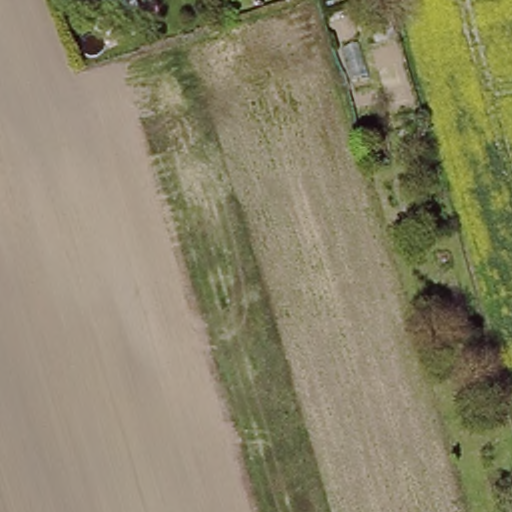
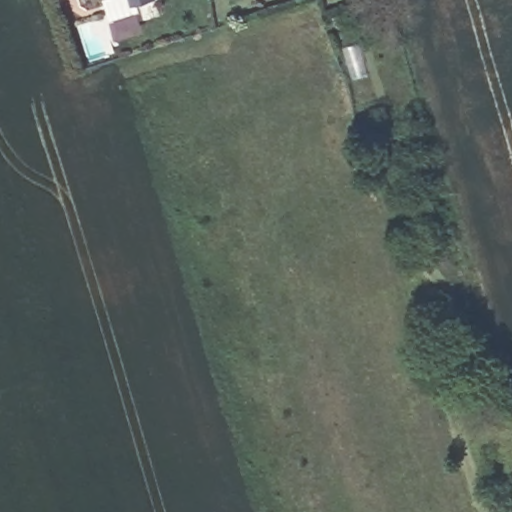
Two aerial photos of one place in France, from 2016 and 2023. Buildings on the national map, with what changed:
unchanged [(105,0),(147,0),(108,12),(105,0)]

